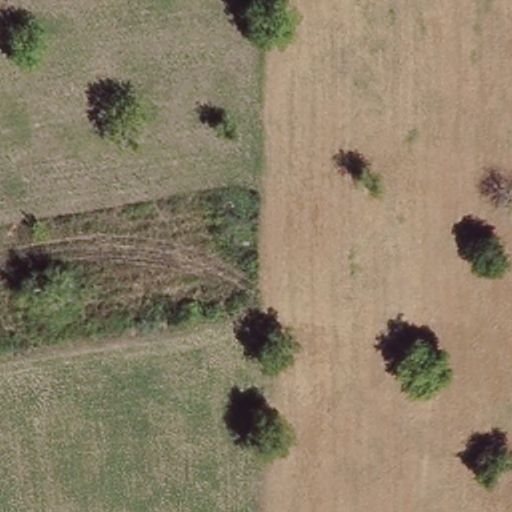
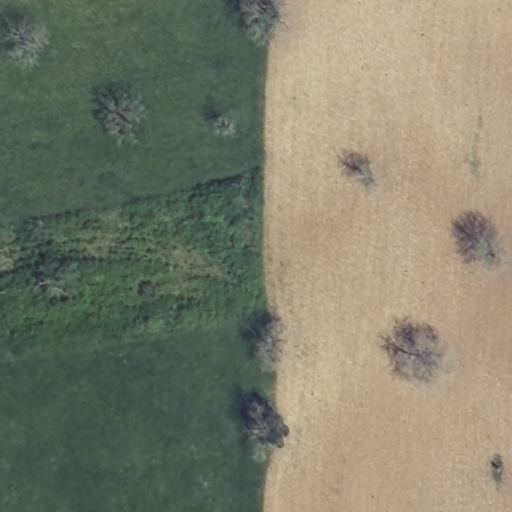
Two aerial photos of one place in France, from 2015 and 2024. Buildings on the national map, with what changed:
[]

